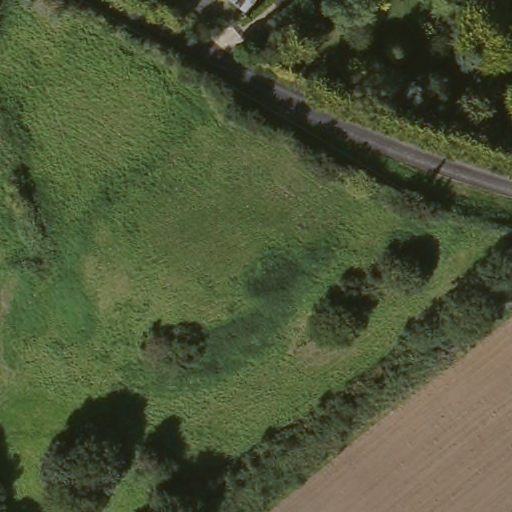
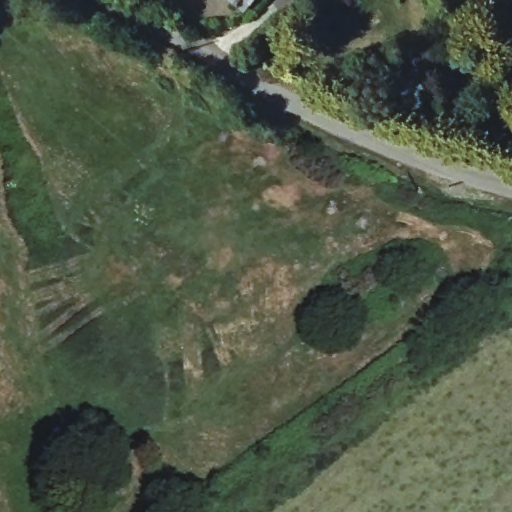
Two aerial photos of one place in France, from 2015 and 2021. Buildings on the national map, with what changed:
unchanged [(264,1),(236,19),(221,0),(266,0),(264,1)]

